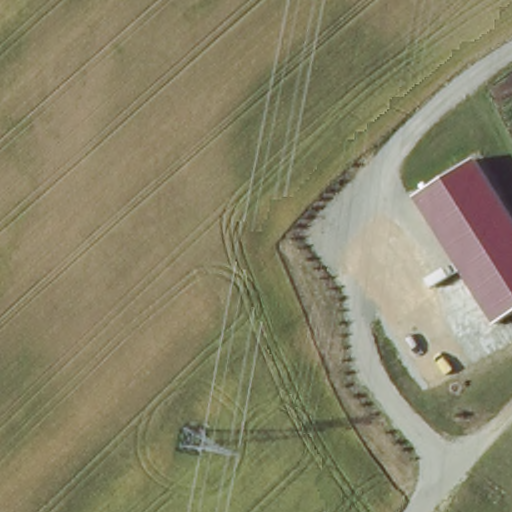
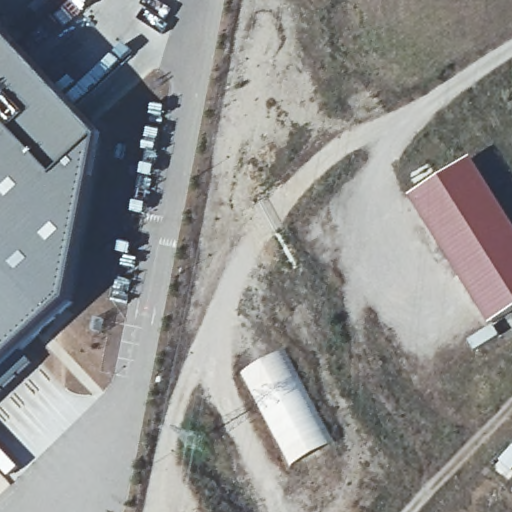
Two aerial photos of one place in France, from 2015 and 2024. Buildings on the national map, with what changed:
new [(93,138),(61,295),(0,353),(0,40),(93,138)]
unchanged [(411,196),(472,158),(512,223),(512,310),(490,324),(411,196)]
new [(285,348),(335,441),(290,466),(241,373),(285,348)]

